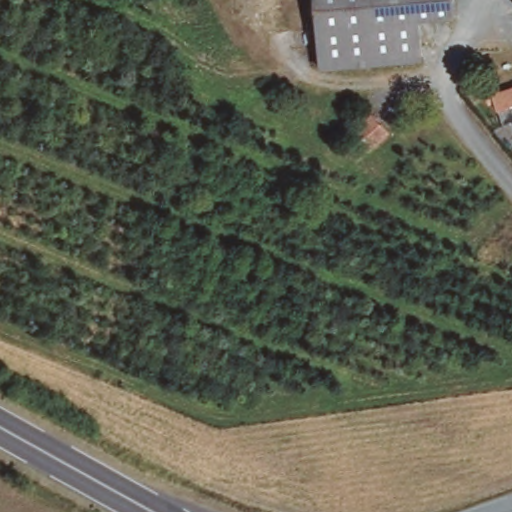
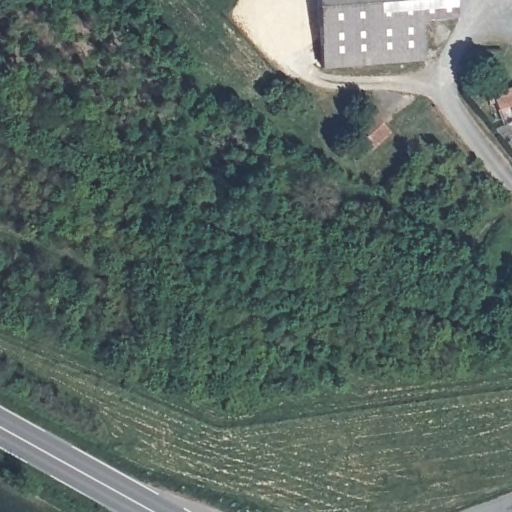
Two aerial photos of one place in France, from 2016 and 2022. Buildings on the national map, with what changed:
unchanged [(452,0),(455,20),(417,23),(422,63),(321,69),(316,0),(452,0)]
unchanged [(512,88),(512,102),(499,106),(495,93),(510,89),(512,88)]
unchanged [(362,168),(346,154),(373,126),(388,141),(362,168)]

